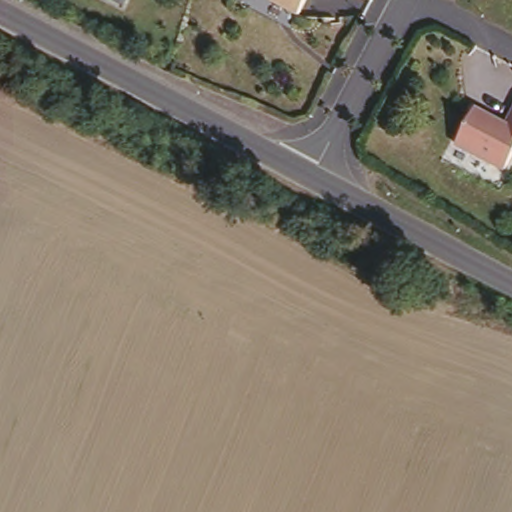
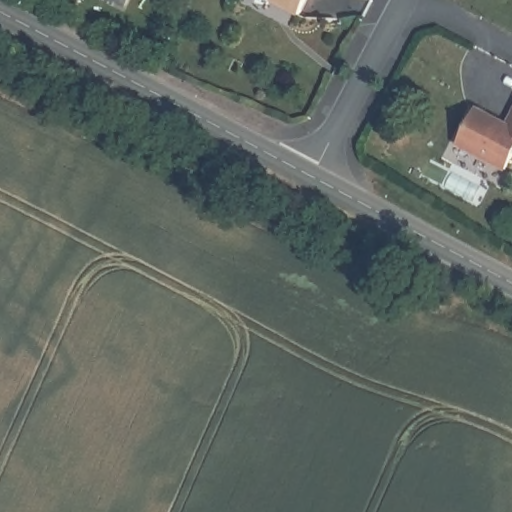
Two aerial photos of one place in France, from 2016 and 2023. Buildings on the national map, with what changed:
unchanged [(112,0),(129,0),(126,6),(112,0)]
unchanged [(277,0),(304,0),(298,10),(277,0)]
unchanged [(475,105),(507,121),(512,112),(512,152),(503,167),(488,159),(490,157),(477,150),(477,152),(455,141),(475,105)]

